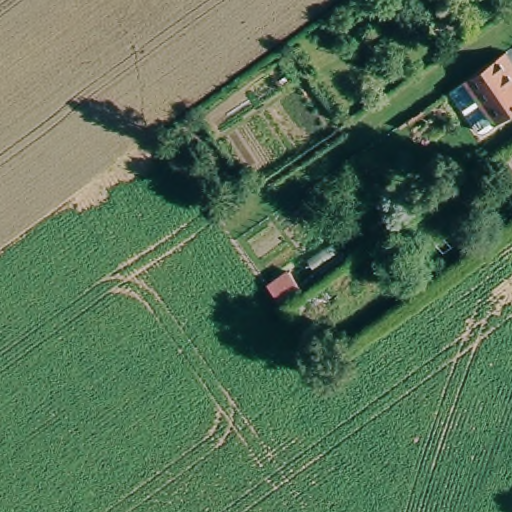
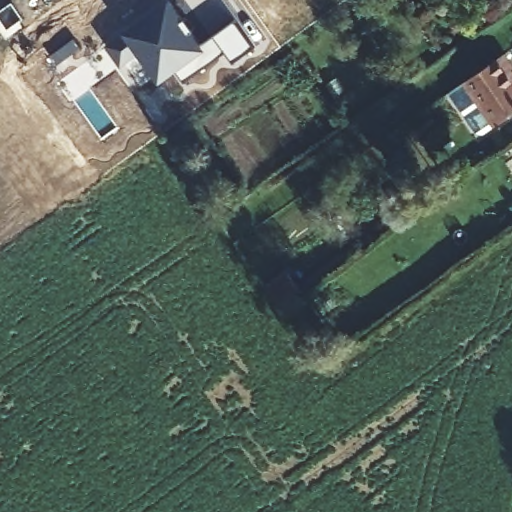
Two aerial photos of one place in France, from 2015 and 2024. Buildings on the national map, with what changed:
new [(121,66),(105,45),(124,31),(166,0),(172,0),(203,42),(207,47),(177,70),(161,82),(140,52),(121,66)]
new [(236,17),(255,45),(234,60),(225,50),(185,80),(177,70),(207,47),(203,42),(236,17)]
unchanged [(502,55),(512,74),(512,80),(510,81),(512,85),(512,117),(493,131),(460,83),(502,55)]
unchanged [(290,273),(302,289),(282,305),(270,287),(290,273)]

